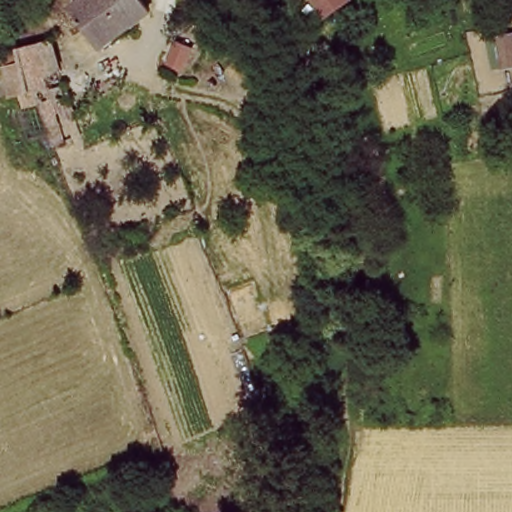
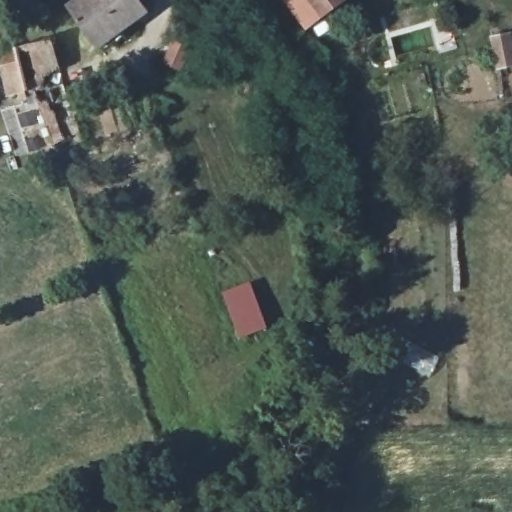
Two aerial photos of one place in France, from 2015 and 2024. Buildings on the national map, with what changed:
unchanged [(67,0),(145,0),(150,12),(83,44),(72,14),(67,0)]
unchanged [(327,15),(315,0),(348,0),(327,15)]
unchanged [(64,98),(58,101),(27,114),(22,99),(15,98),(11,51),(35,46),(44,44),(64,98)]
new [(268,329),(241,341),(222,295),(249,284),(268,329)]

